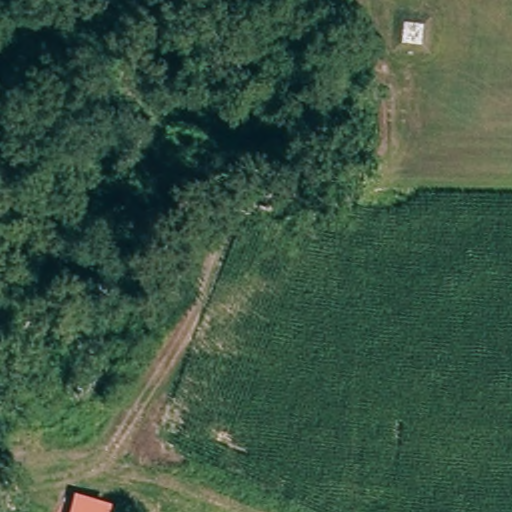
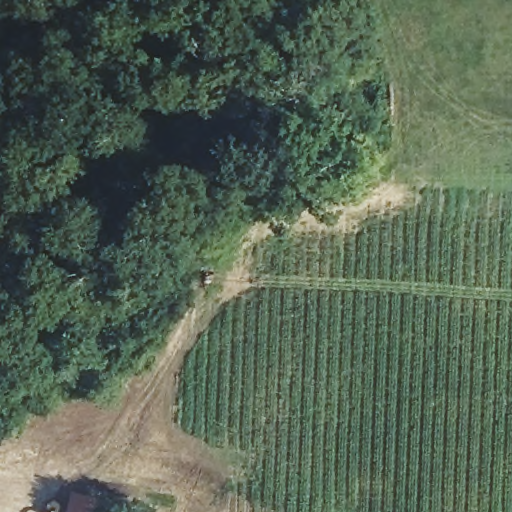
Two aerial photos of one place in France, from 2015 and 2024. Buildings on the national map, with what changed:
unchanged [(75,502),(108,512),(72,512),(75,502)]

